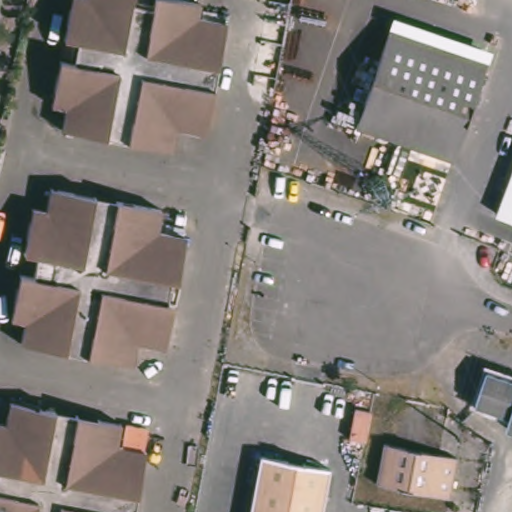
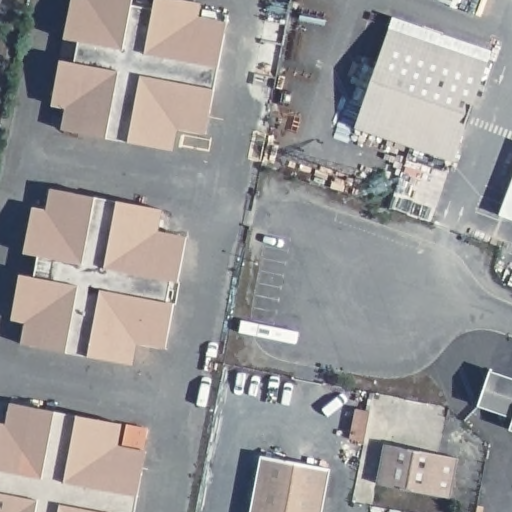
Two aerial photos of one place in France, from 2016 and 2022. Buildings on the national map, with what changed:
unchanged [(199,134),(170,129),(166,151),(56,130),(60,107),(46,105),(65,0),(140,0),(138,10),(145,10),(148,0),(178,0),(194,3),(191,19),(221,25),(199,134)]
unchanged [(447,159),(349,125),(382,30),(480,65),(447,159)]
unchanged [(512,180),(512,220),(499,215),(512,180)]
unchanged [(151,232),(180,238),(171,282),(165,281),(160,302),(168,303),(159,348),(130,342),(125,365),(15,345),(19,322),(5,318),(13,274),(28,277),(32,256),(17,253),(26,208),(40,211),(45,189),(155,210),(151,232)]
unchanged [(478,406),(490,372),(512,380),(512,418),(478,406)]
unchanged [(0,512),(0,425),(4,403),(115,424),(111,446),(140,451),(129,512),(0,512)]
unchanged [(363,440),(350,438),(355,407),(369,410),(363,440)]
unchanged [(509,430),(512,422),(512,431),(509,430)]
unchanged [(448,499),(375,484),(384,444),(456,459),(448,499)]
unchanged [(245,512),(255,455),(324,468),(316,512),(245,512)]

